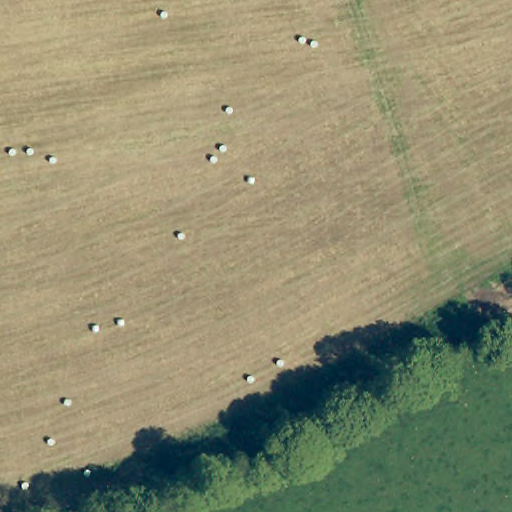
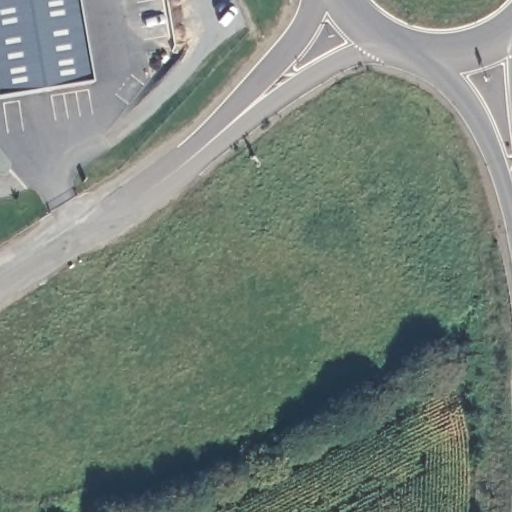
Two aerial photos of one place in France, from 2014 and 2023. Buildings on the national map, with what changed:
new [(0,99),(0,0),(76,0),(90,84),(0,99)]

